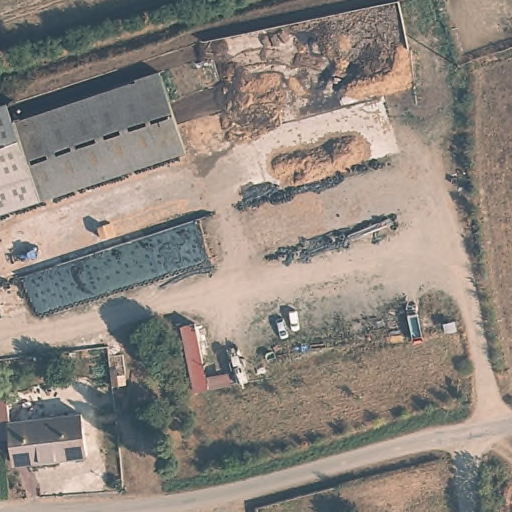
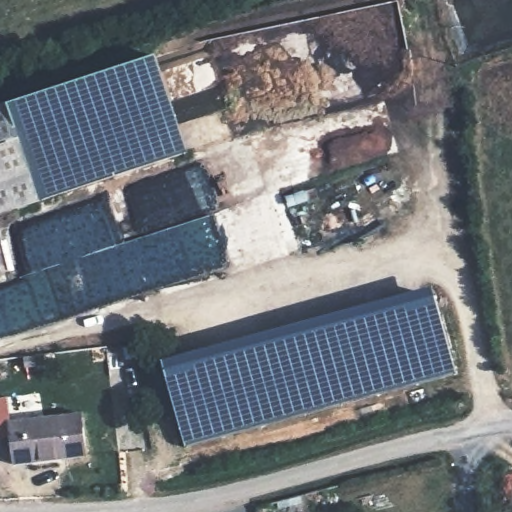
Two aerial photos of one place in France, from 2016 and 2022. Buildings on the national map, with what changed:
unchanged [(162,80),(187,154),(166,160),(0,217),(0,102),(5,100),(15,129),(141,87),(162,80)]
new [(433,287),(453,375),(187,448),(178,413),(166,418),(153,365),(163,360),(433,287)]
unchanged [(85,453),(14,460),(10,420),(81,413),(85,453)]

